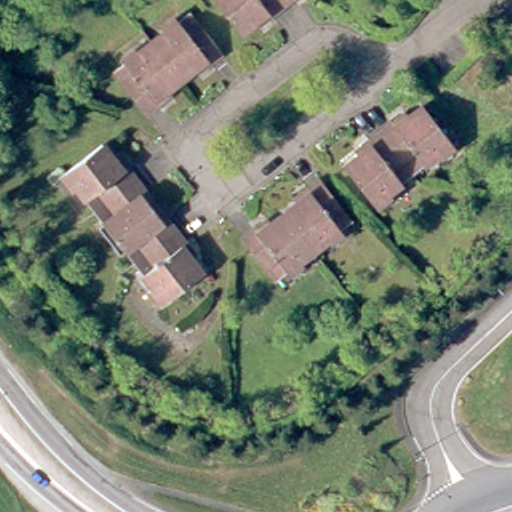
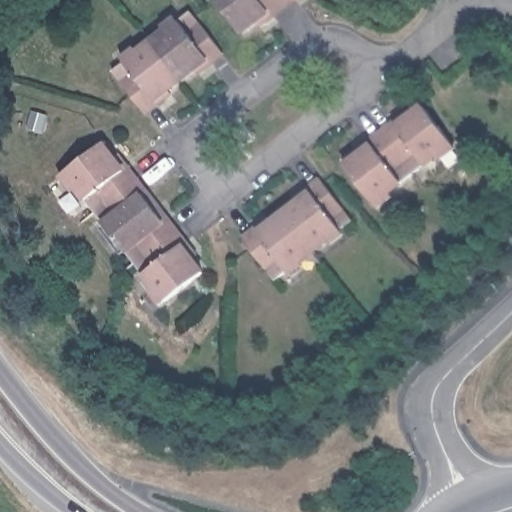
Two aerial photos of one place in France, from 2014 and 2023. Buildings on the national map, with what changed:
unchanged [(262,24),(256,23),(242,33),(215,0),(292,0),(262,24)]
unchanged [(222,54),(198,72),(195,68),(168,89),(170,93),(148,113),(115,70),(192,12),(222,54)]
unchanged [(351,148),(404,108),(408,113),(420,103),(450,140),(371,202),(341,164),(355,155),(351,148)]
unchanged [(122,158),(126,155),(206,255),(202,258),(211,272),(173,301),(71,174),(110,144),(122,158)]
unchanged [(272,219),(299,200),(295,194),(321,174),(354,218),(275,279),(242,235),(269,215),(272,219)]

